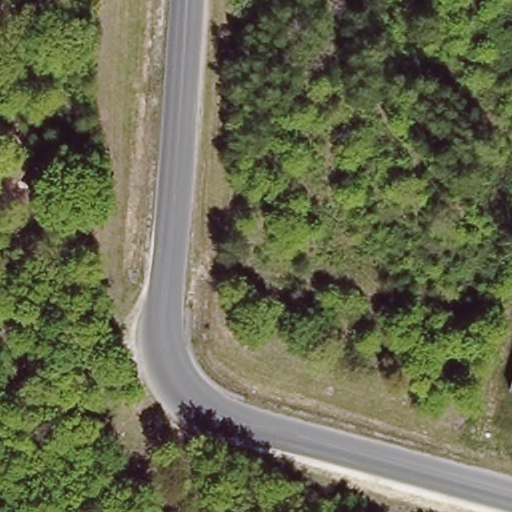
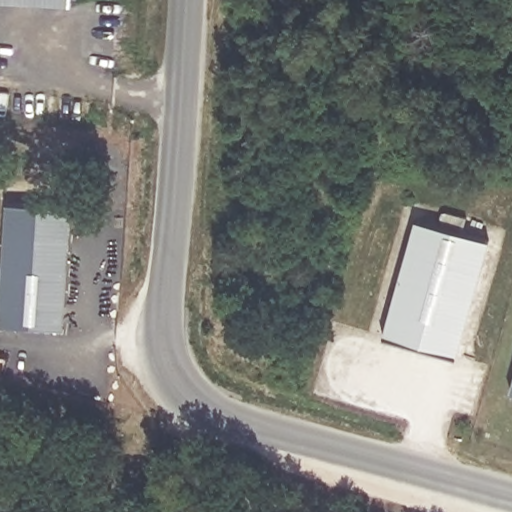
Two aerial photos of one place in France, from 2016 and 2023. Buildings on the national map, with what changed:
new [(13,0),(70,0),(70,4),(13,0)]
new [(71,206),(65,327),(0,323),(0,293),(6,204),(71,206)]
new [(384,335),(414,219),(492,239),(460,355),(384,335)]
unchanged [(510,392),(512,385),(512,393),(510,392)]

